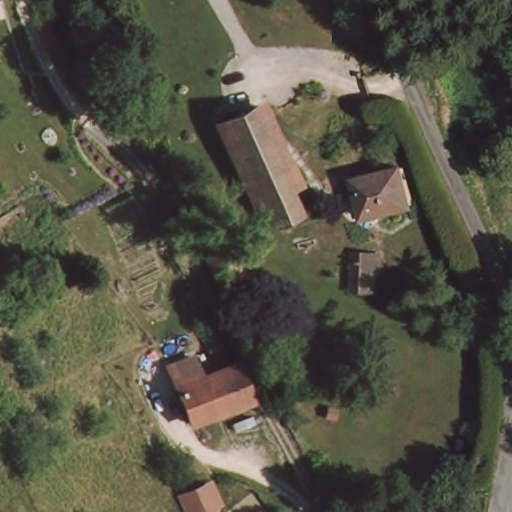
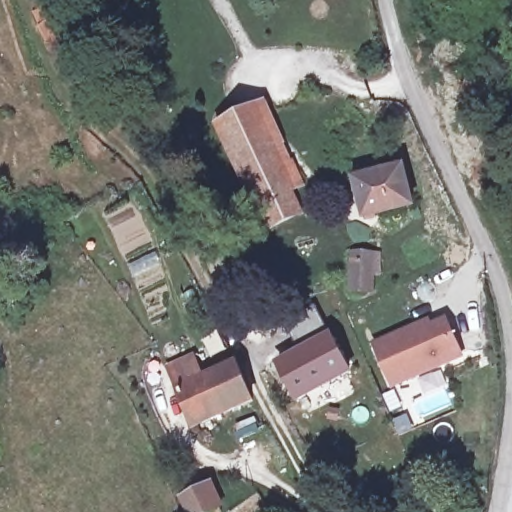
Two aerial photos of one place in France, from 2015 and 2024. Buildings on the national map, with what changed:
unchanged [(267,227),(256,207),(217,124),(255,106),(285,173),(291,170),(297,184),(290,187),(292,190),(287,192),(297,212),(267,227)]
unchanged [(405,167),(414,204),(365,216),(356,179),(405,167)]
unchanged [(231,249),(250,289),(227,300),(209,259),(231,249)]
unchanged [(380,272),(370,272),(369,291),(351,290),(354,255),(380,256),(380,272)]
new [(332,333),(354,374),(297,402),(275,362),(300,348),(285,323),(317,307),(332,333)]
new [(447,317),(466,356),(392,389),(372,343),(430,318),(432,323),(447,317)]
unchanged [(179,388),(171,368),(193,359),(202,380),(238,363),(254,400),(194,426),(179,388)]
unchanged [(207,486),(217,508),(208,512),(188,512),(181,497),(207,486)]

